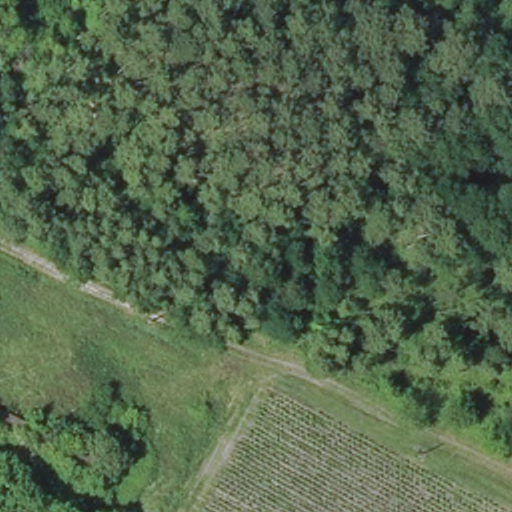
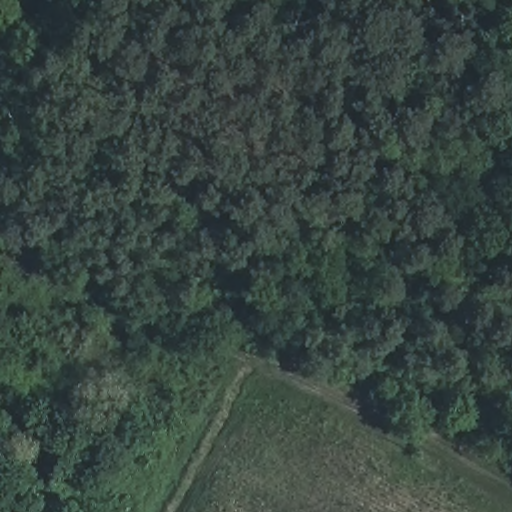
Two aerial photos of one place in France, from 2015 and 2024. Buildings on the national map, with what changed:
unchanged [(74,483),(0,456),(0,415),(93,460),(74,483)]

